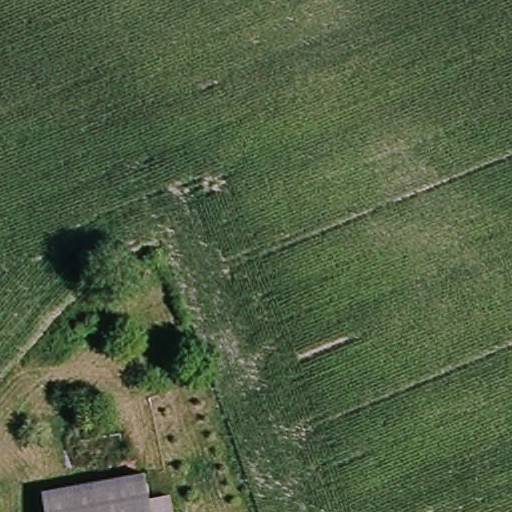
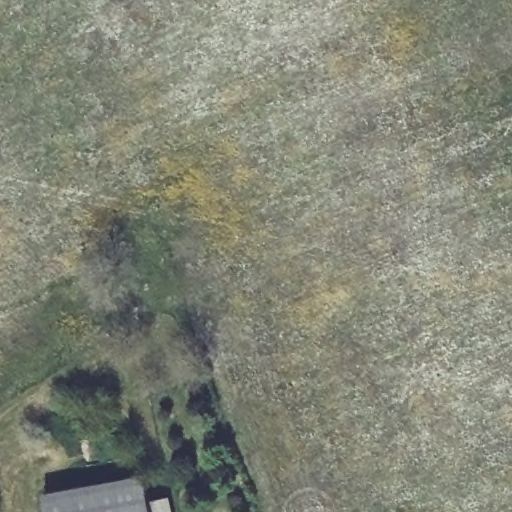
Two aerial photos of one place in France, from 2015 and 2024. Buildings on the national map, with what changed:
unchanged [(161,512),(59,512),(56,488),(157,478),(161,512)]

